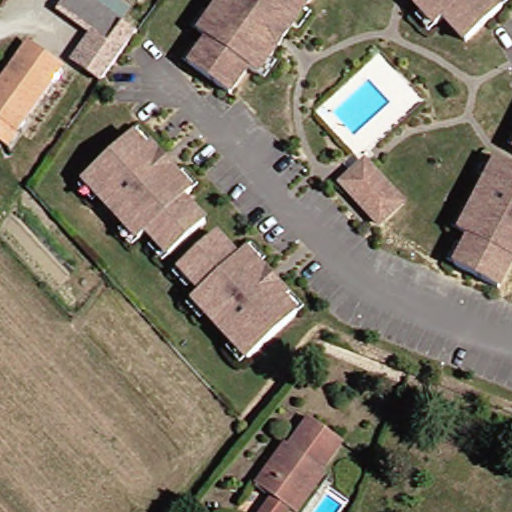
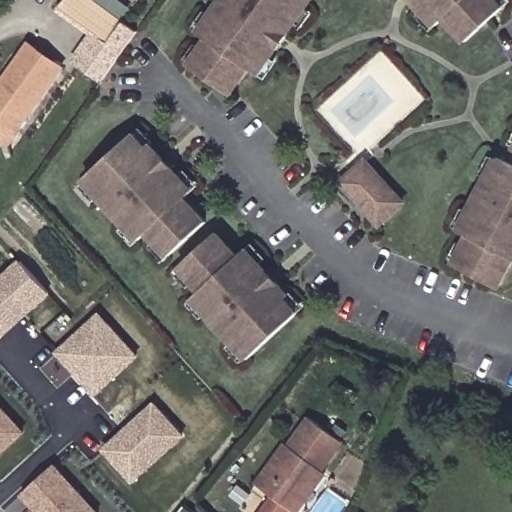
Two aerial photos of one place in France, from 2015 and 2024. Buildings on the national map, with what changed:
unchanged [(65,9),(70,0),(99,0),(130,21),(114,44),(99,33),(65,9)]
unchanged [(254,74),(235,100),(195,71),(214,45),(204,39),(231,0),(320,0),(263,80),(254,74)]
unchanged [(448,23),(440,30),(411,0),(494,0),(506,14),(470,47),(448,23)]
unchanged [(79,60),(99,33),(114,44),(130,21),(143,31),(133,45),(108,80),(79,60)]
unchanged [(0,77),(25,44),(58,69),(11,131),(2,143),(0,141),(0,77)]
unchanged [(134,134),(146,148),(150,144),(192,191),(184,199),(205,223),(169,256),(147,232),(139,239),(84,179),(134,134)]
unchanged [(368,163),(406,204),(382,225),(345,184),(368,163)]
unchanged [(473,242),(463,236),(500,163),(512,169),(512,274),(502,293),(458,270),(473,242)]
unchanged [(215,234),(237,258),(246,250),(288,295),(284,299),(297,314),(247,359),(192,299),(200,291),(179,267),(215,234)]
new [(0,340),(0,339),(0,276),(19,259),(51,294),(0,340)]
new [(140,357),(96,396),(55,352),(99,312),(140,357)]
new [(185,437),(132,484),(101,449),(154,401),(185,437)]
new [(0,453),(0,407),(23,432),(0,453)]
unchanged [(259,511),(269,497),(251,485),(281,444),(284,447),(305,419),(338,443),(318,471),(321,473),(293,512),(289,512),(285,509),(284,512),(258,512),(259,511)]
new [(52,468),(92,512),(35,512),(21,497),(52,468)]

